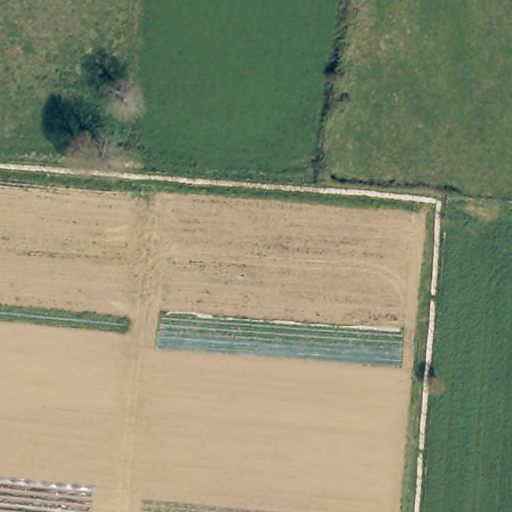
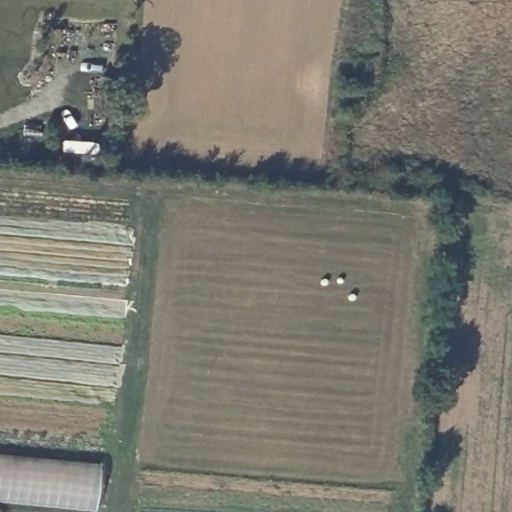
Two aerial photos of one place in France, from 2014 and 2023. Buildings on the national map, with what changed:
new [(95,512),(90,512),(0,503),(0,454),(100,464),(95,512)]

